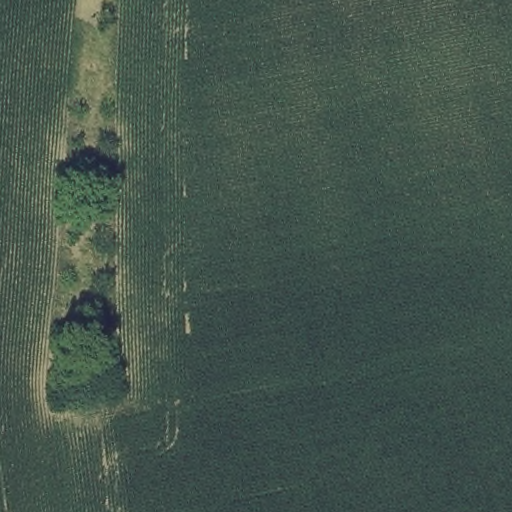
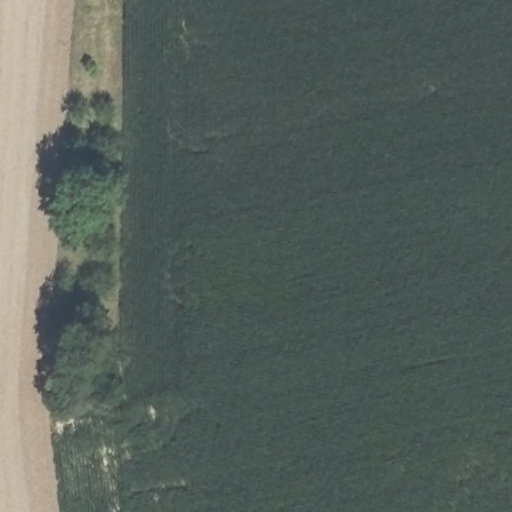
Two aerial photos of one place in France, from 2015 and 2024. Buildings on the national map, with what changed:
[]

